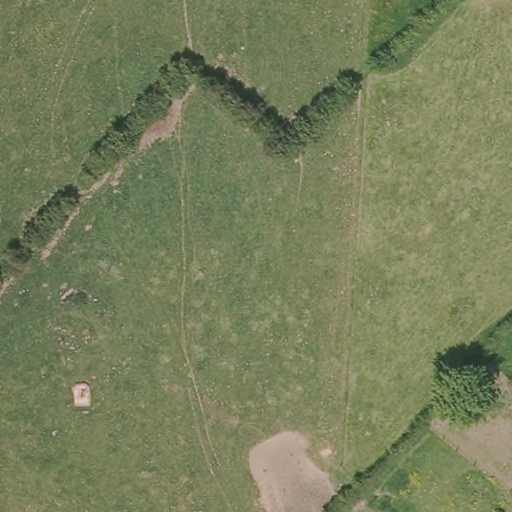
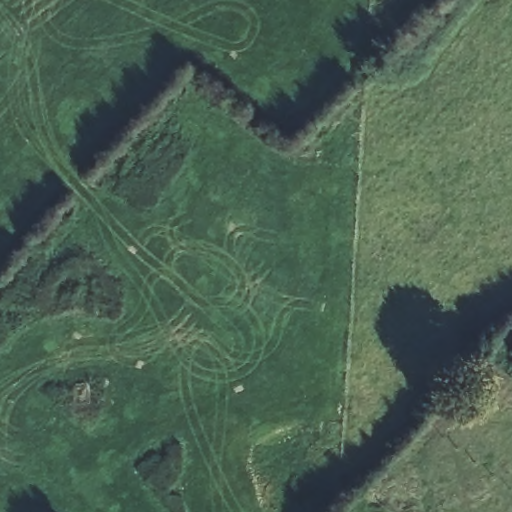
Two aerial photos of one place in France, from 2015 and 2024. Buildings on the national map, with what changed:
[]

